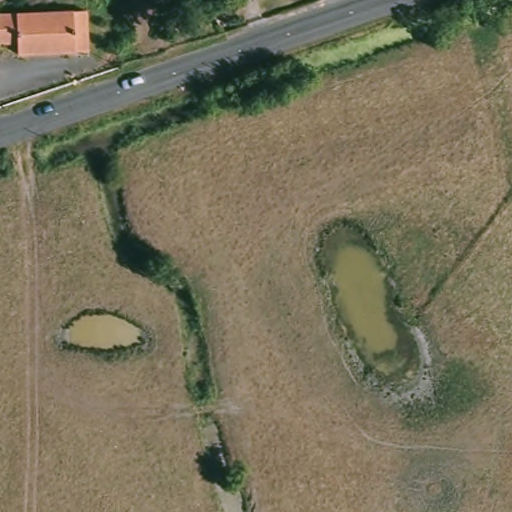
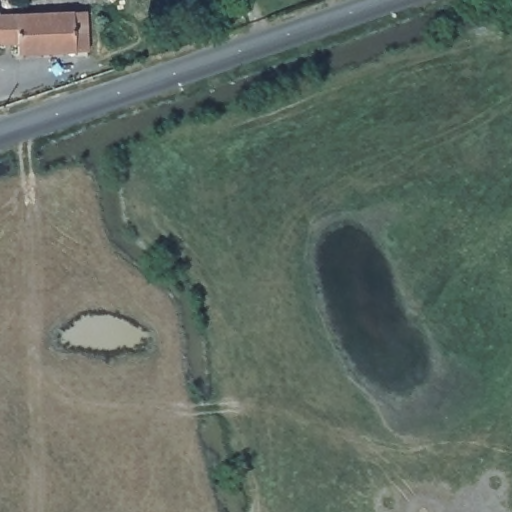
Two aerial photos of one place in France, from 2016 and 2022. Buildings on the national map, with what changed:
unchanged [(10,16),(85,14),(87,61),(13,65),(12,50),(0,50),(0,6),(9,6),(10,16)]

